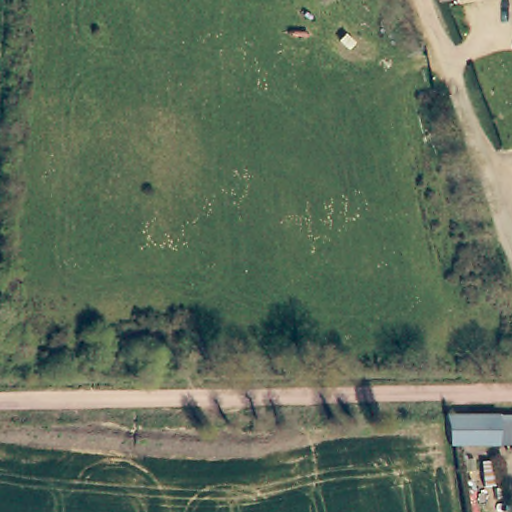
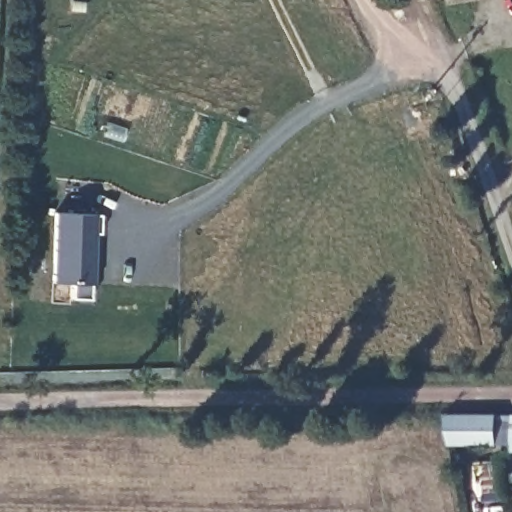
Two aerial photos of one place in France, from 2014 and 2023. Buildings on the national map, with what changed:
new [(100,232),(94,232),(91,285),(89,299),(70,298),(70,282),(51,282),(54,213),(95,214),(100,215),(100,232)]
unchanged [(510,446),(486,445),(449,445),(444,415),(487,416),(511,416),(512,416),(512,454),(510,453),(510,446)]

